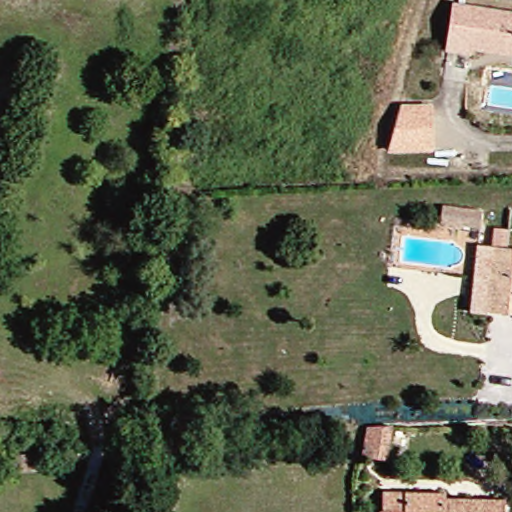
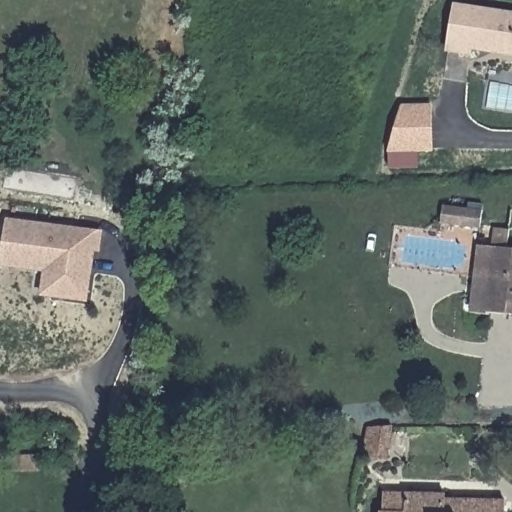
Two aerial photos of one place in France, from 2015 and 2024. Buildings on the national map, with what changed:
unchanged [(511,53),(498,51),(476,47),(475,53),(453,50),(460,6),(512,13),(512,53),(511,53)]
unchanged [(424,160),(383,159),(394,117),(424,117),(424,160)]
unchanged [(476,227),(439,222),(441,207),(478,212),(476,227)]
new [(0,265),(6,220),(100,232),(98,250),(93,250),(89,274),(87,300),(56,297),(41,294),(45,270),(0,265)]
unchanged [(484,245),(498,247),(500,228),(512,229),(512,243),(511,248),(512,248),(512,314),(492,312),(477,311),(484,245)]
unchanged [(387,458),(361,455),(366,426),(392,426),(387,458)]
unchanged [(39,471),(1,472),(0,457),(38,456),(39,471)]
unchanged [(445,498),(505,500),(505,512),(386,512),(386,492),(406,492),(445,493),(445,498)]

